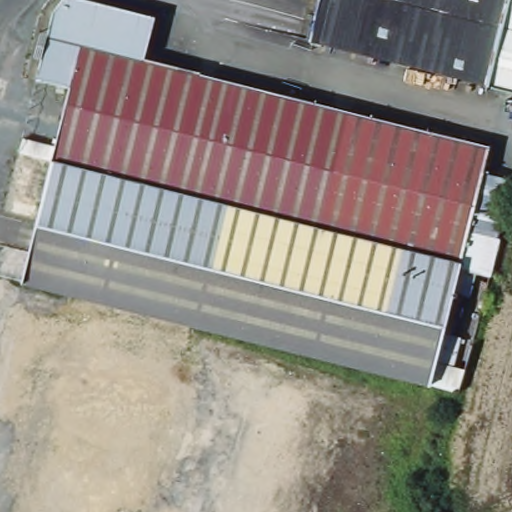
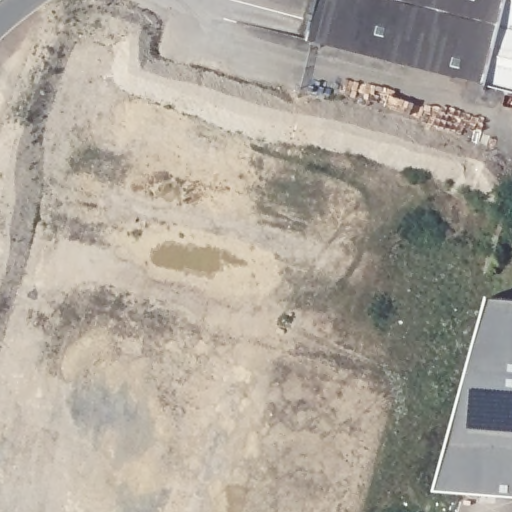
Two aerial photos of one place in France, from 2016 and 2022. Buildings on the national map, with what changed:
demolished [(53,5),(56,0),(129,0),(157,7),(146,52),(492,137),(486,165),(512,171),(512,186),(502,225),(470,212),(483,147),(481,146),(142,57),(135,98),(78,91),(69,90),(72,79),(37,70),(42,50),(48,25),(53,5)]
unchanged [(512,0),(512,94),(310,44),(321,0),(512,0)]
demolished [(78,91),(135,98),(142,57),(481,146),(483,147),(470,212),(502,225),(502,230),(488,226),(478,265),(462,261),(446,326),(463,330),(460,345),(400,330),(32,239),(69,90),(78,91)]
demolished [(32,239),(400,330),(460,345),(456,359),(438,355),(434,374),(23,272),(32,239)]
demolished [(187,345),(146,512),(15,512),(40,413),(0,404),(0,378),(17,306),(187,345)]

